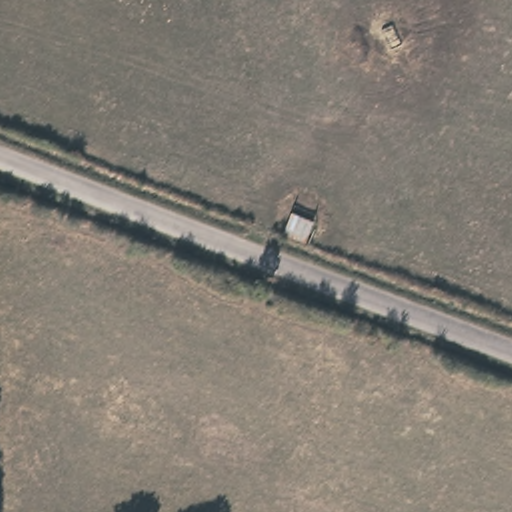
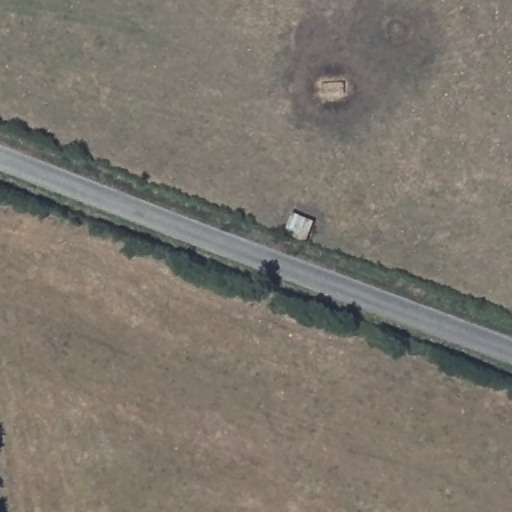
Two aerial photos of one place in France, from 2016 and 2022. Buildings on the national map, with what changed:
[]

